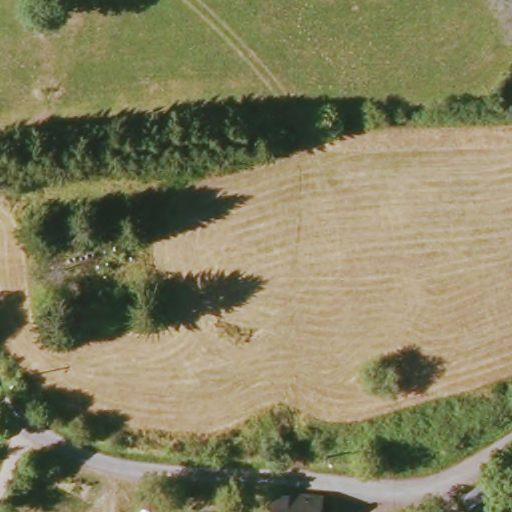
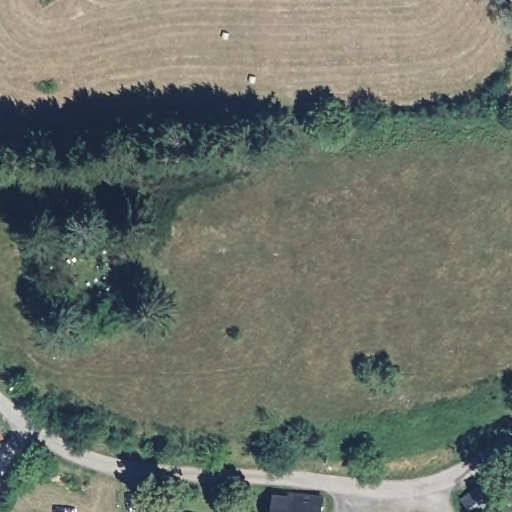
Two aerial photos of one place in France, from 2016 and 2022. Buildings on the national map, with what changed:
unchanged [(0,442),(0,424),(5,440),(0,442)]
unchanged [(473,512),(469,512),(459,497),(483,483),(487,488),(492,484),(497,489),(492,496),(494,499),(477,509),(473,512)]
unchanged [(278,491),(326,496),(325,512),(276,512),(278,491)]

